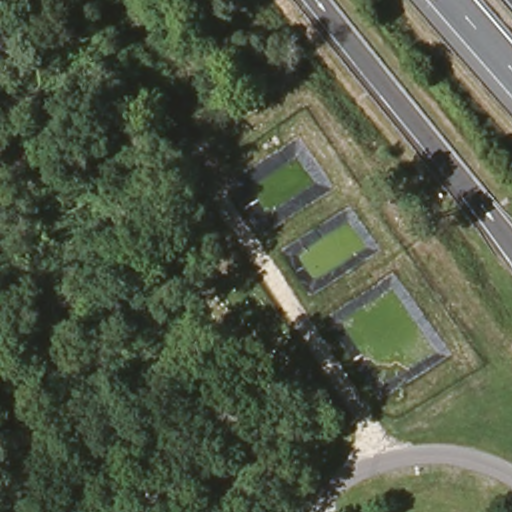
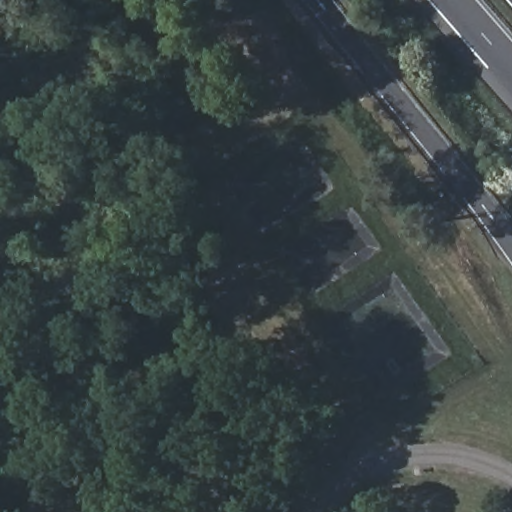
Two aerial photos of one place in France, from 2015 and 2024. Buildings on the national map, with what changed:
[]

